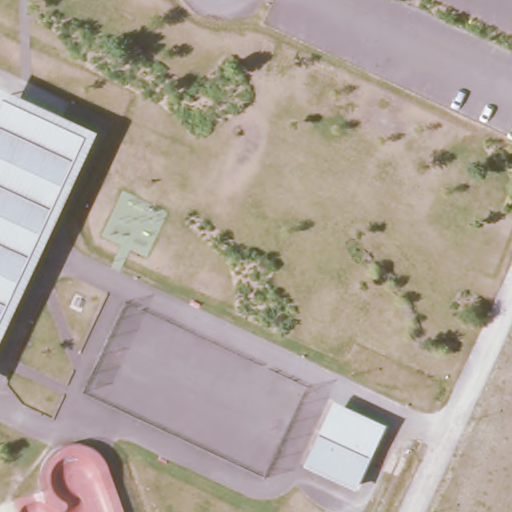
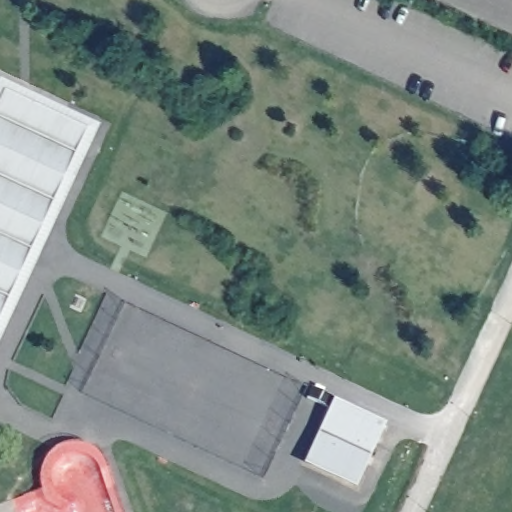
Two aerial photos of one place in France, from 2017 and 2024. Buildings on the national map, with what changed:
unchanged [(80,130),(0,301),(0,92),(80,130)]
unchanged [(343,473),(309,457),(322,427),(335,399),(354,407),(388,423),(375,453),(361,482),(343,473)]

